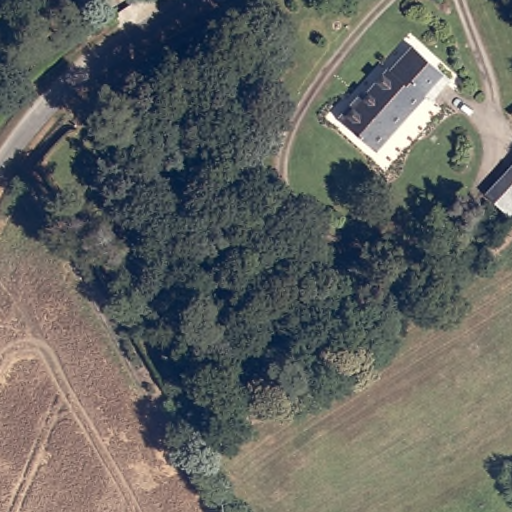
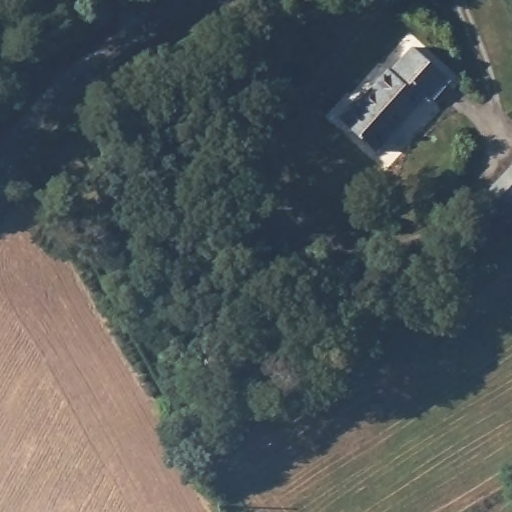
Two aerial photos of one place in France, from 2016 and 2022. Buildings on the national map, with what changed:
unchanged [(452,78),(433,97),(427,94),(373,151),(335,117),(352,97),(357,97),(386,65),(391,67),(412,45),(452,78)]
unchanged [(511,189),(512,188),(512,190),(511,189)]

